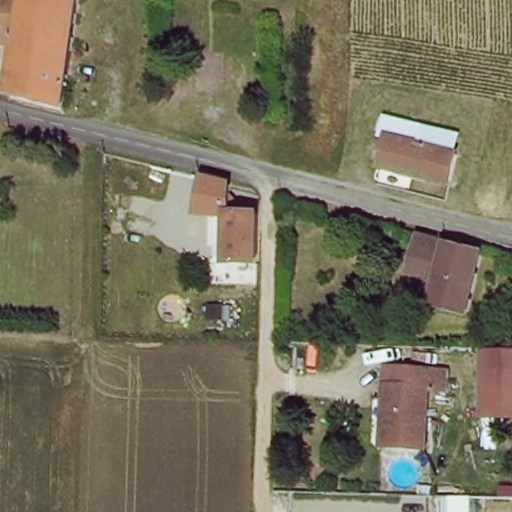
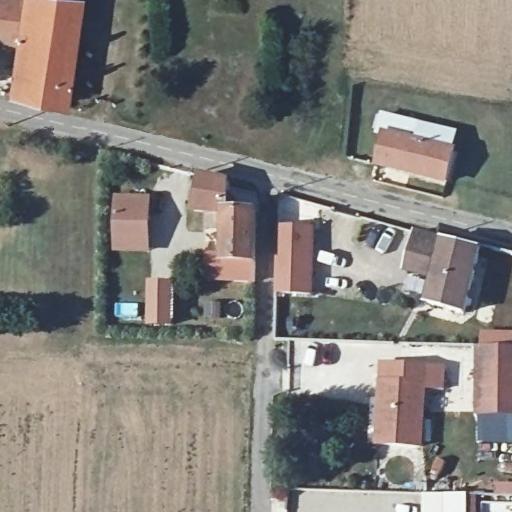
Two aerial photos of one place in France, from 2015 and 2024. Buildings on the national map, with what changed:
unchanged [(65,110),(60,109),(6,97),(15,50),(0,48),(0,0),(79,0),(65,110)]
unchanged [(451,180),(381,163),(388,136),(394,115),(425,124),(420,144),(457,154),(451,180)]
unchanged [(190,211),(197,177),(228,185),(227,212),(255,215),(253,265),(220,263),(220,212),(190,211)]
new [(113,238),(113,198),(146,199),(145,239),(145,250),(113,250),(113,238)]
new [(310,293),(276,291),(276,226),(310,226),(310,293)]
unchanged [(433,280),(408,271),(419,234),(482,250),(466,317),(425,306),(433,280)]
unchanged [(512,349),(512,416),(473,415),(474,348),(491,348),(512,349)]
unchanged [(400,448),(377,447),(380,384),(384,385),(384,366),(401,366),(400,448)]
unchanged [(428,367),(447,368),(447,388),(428,388),(426,446),(400,448),(401,366),(428,367)]

